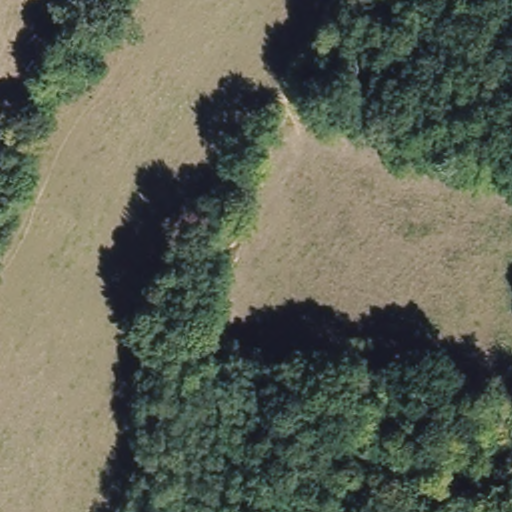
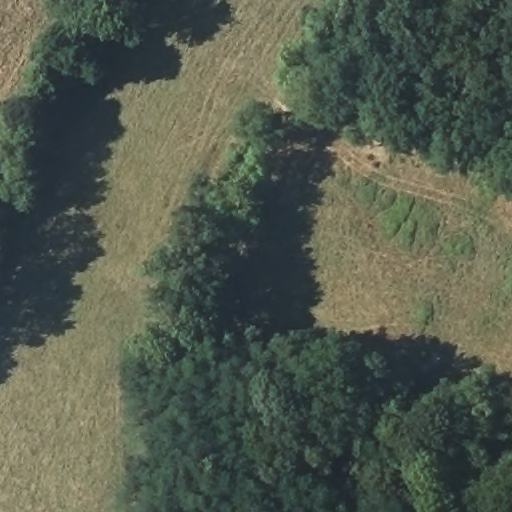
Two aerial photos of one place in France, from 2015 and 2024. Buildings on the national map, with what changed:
[]

